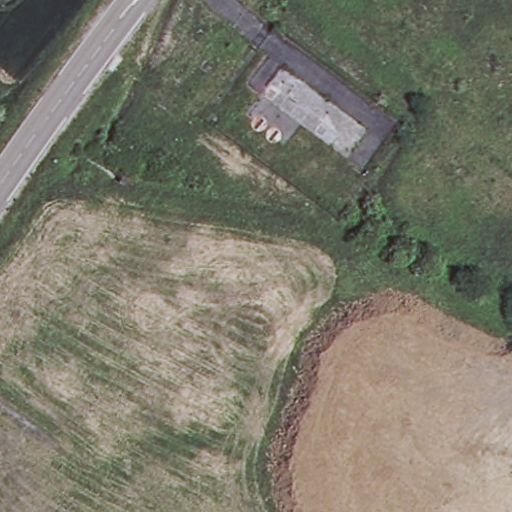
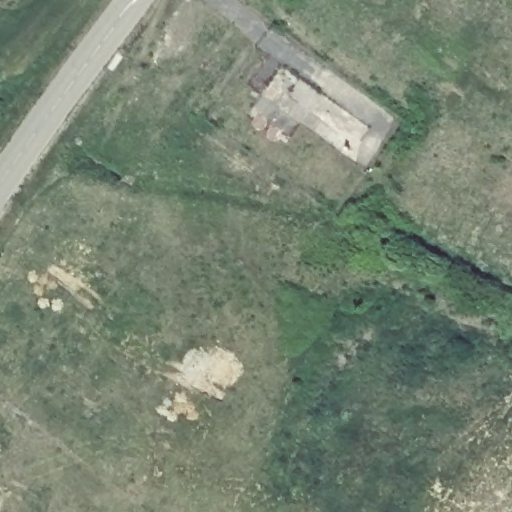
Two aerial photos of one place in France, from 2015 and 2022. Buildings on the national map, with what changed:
[]

